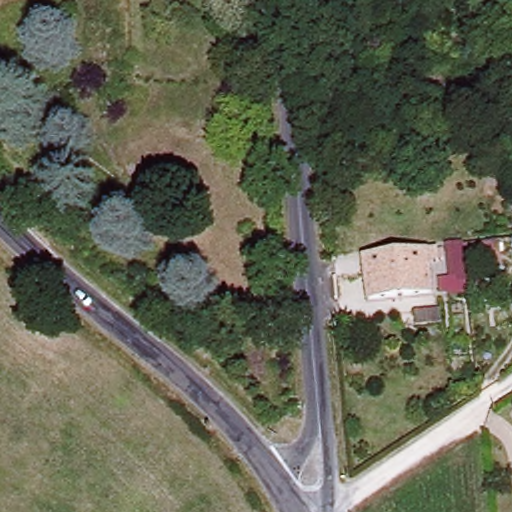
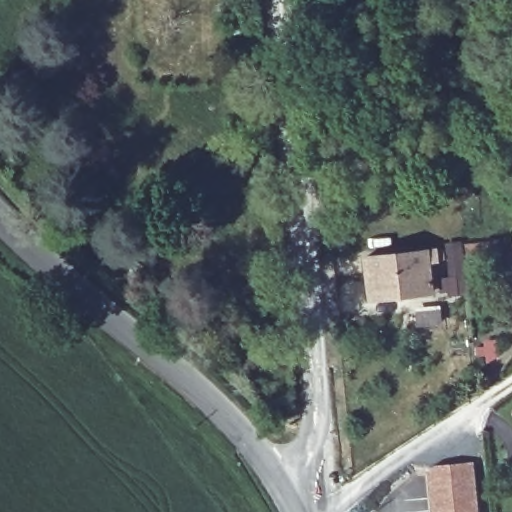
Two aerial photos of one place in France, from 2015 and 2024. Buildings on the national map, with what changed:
new [(502,267),(486,269),(484,255),(467,257),(465,245),(482,242),(499,240),(502,267)]
unchanged [(369,300),(364,259),(442,250),(443,260),(428,261),(431,291),(369,300)]
new [(436,466),(470,462),(476,512),(434,512),(429,470),(436,466)]

